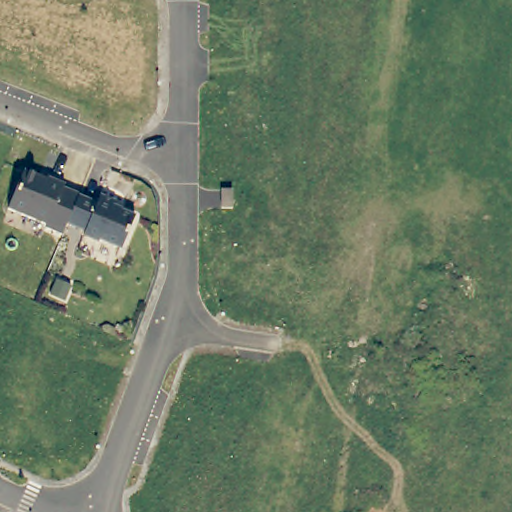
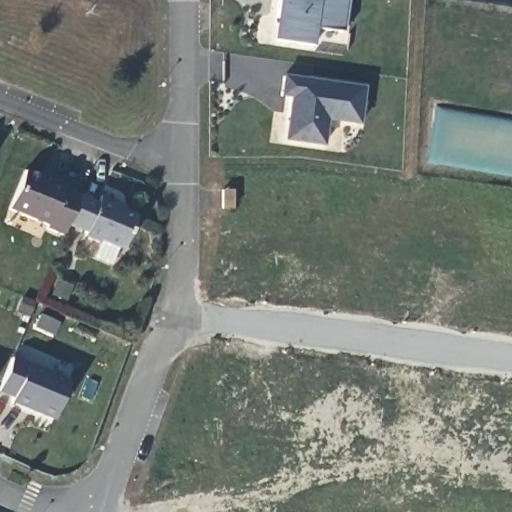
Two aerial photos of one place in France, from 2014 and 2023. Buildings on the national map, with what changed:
new [(341,31),(317,28),(314,46),(271,42),(275,0),(348,0),(341,31)]
new [(363,126),(328,120),(325,147),(287,141),(291,100),(280,99),(283,75),(367,87),(363,126)]
unchanged [(72,224),(71,226),(66,238),(50,231),(51,228),(12,212),(28,173),(51,183),(52,181),(70,188),(68,191),(83,197),(82,199),(72,224)]
unchanged [(236,206),(226,206),(226,188),(236,188),(236,206)]
unchanged [(139,219),(125,252),(104,242),(102,245),(87,239),(90,234),(71,226),(72,224),(82,199),(101,206),(105,198),(120,204),(117,210),(139,219)]
new [(52,421),(11,403),(14,396),(0,390),(14,356),(71,381),(52,421)]

